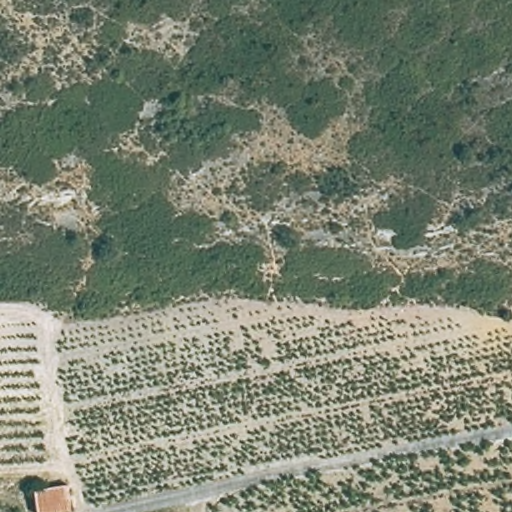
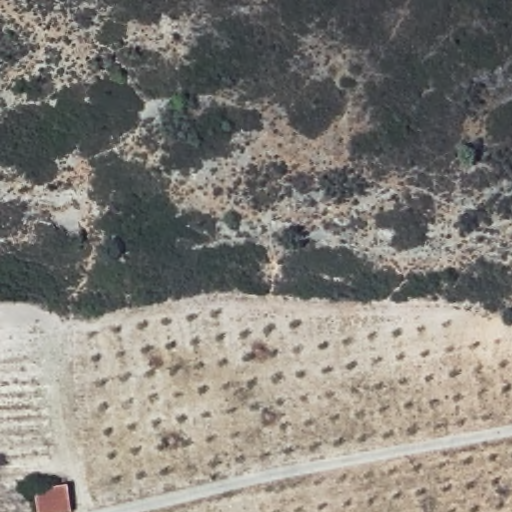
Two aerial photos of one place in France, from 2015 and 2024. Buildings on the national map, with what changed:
unchanged [(69,482),(72,502),(37,508),(32,487),(69,482)]

